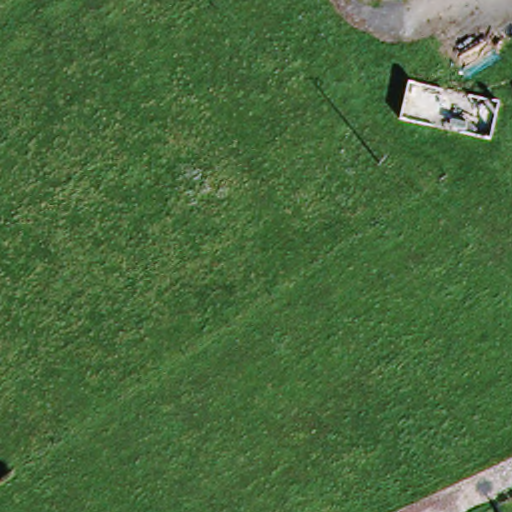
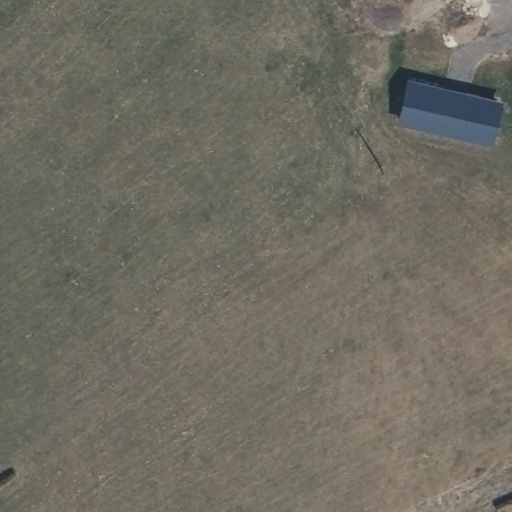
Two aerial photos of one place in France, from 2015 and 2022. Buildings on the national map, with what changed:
new [(408,81),(498,102),(489,139),(399,119),(408,81)]

